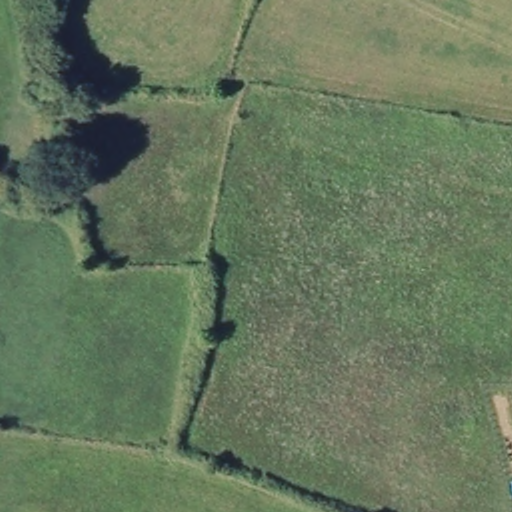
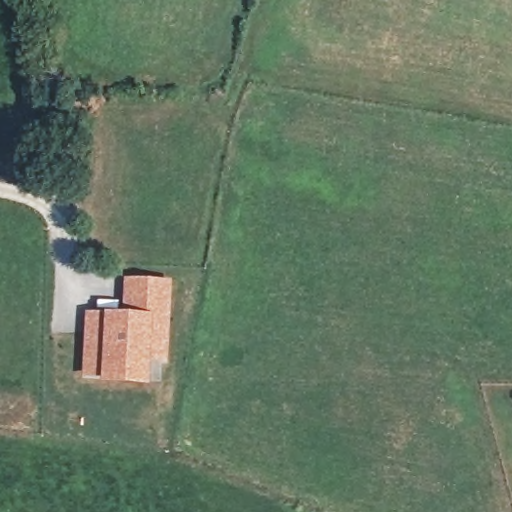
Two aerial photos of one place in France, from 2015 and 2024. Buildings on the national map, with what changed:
new [(84,311),(120,312),(122,277),(172,278),(166,363),(151,362),(149,386),(98,382),(98,380),(80,377),(84,311)]

